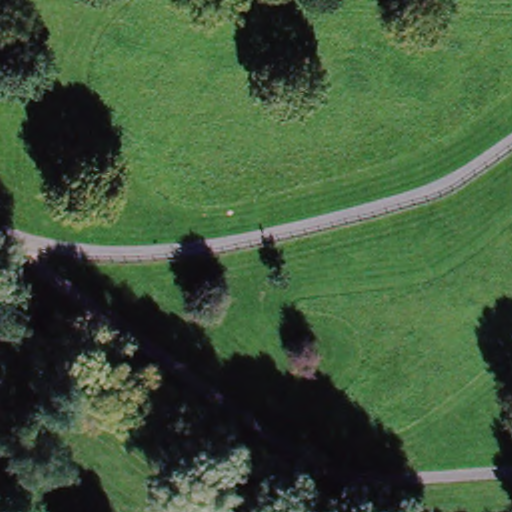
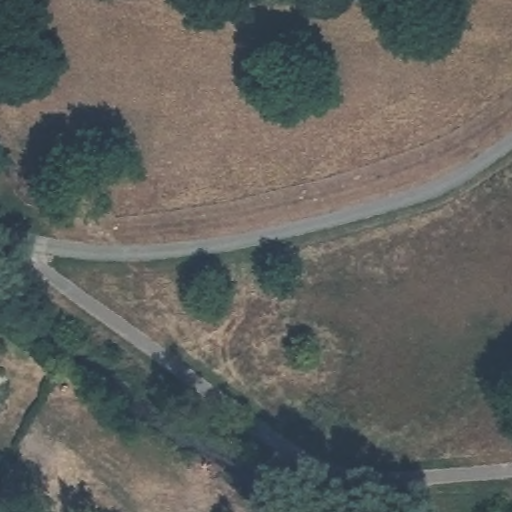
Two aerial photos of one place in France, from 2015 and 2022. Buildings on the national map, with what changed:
[]

